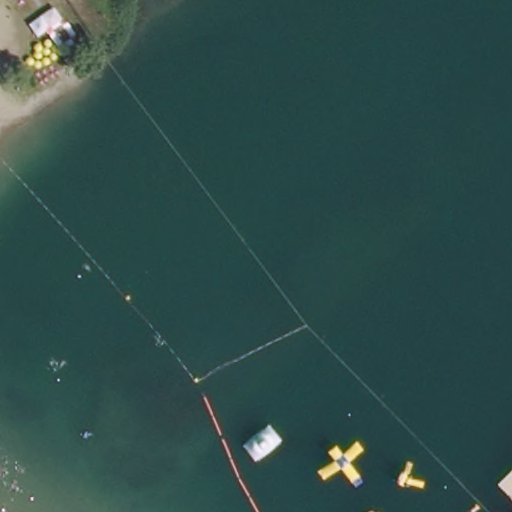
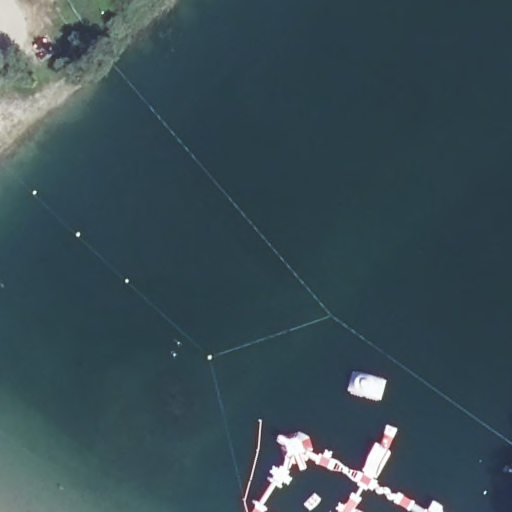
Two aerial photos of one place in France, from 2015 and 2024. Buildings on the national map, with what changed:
unchanged [(34,5),(32,0),(40,0),(34,5)]

